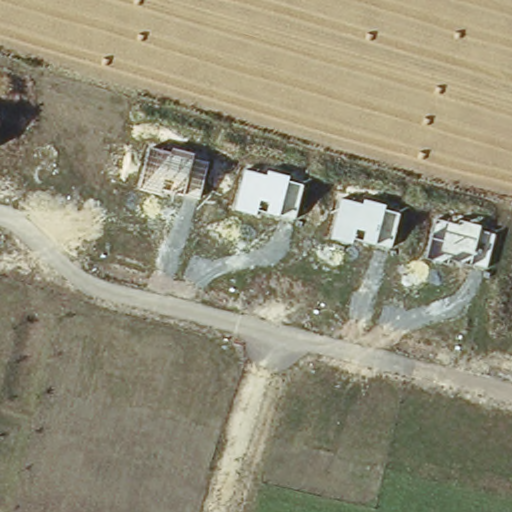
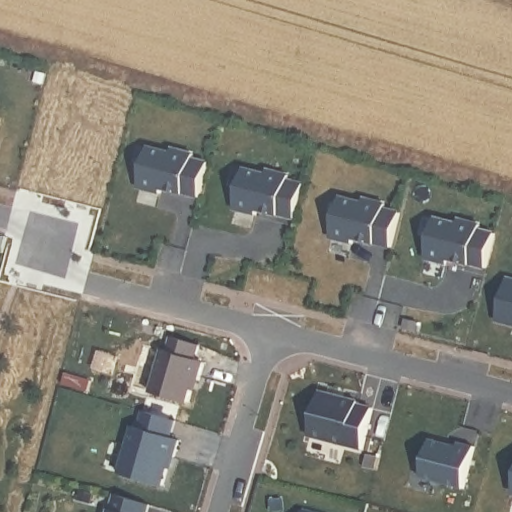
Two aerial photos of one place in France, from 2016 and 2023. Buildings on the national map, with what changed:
unchanged [(1,115),(0,119),(0,114),(1,115)]
unchanged [(200,199),(163,191),(161,196),(140,190),(150,146),(171,151),(172,148),(196,154),(195,159),(209,163),(200,199)]
unchanged [(268,174),(269,171),(291,176),(290,181),(306,184),(296,221),(257,211),(256,215),(235,210),(246,169),(268,174)]
unchanged [(364,204),(365,199),(388,205),(386,211),(401,214),(391,249),(353,239),(351,244),(331,239),(341,198),(364,204)]
unchanged [(460,224),(461,220),(483,226),(482,230),(497,234),(489,270),(449,260),(447,265),(425,258),(435,218),(460,224)]
new [(512,330),(496,326),(507,284),(512,285),(512,330)]
new [(162,349),(166,350),(170,339),(197,347),(195,358),(204,361),(190,408),(150,395),(162,349)]
new [(355,403),(369,407),(358,447),(305,433),(317,390),(355,400),(355,403)]
new [(178,427),(173,443),(177,444),(164,490),(120,477),(133,432),(136,433),(141,417),(178,427)]
new [(430,444),(458,451),(459,448),(473,452),(462,493),(420,482),(430,444)]
new [(149,509),(148,512),(111,512),(115,499),(149,509)]
new [(302,510),(309,512),(302,512),(302,510)]

